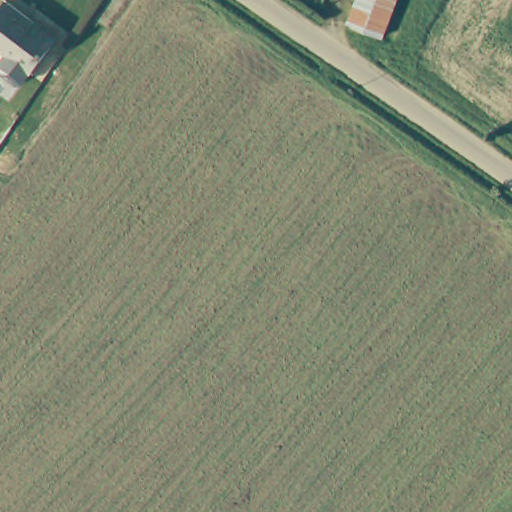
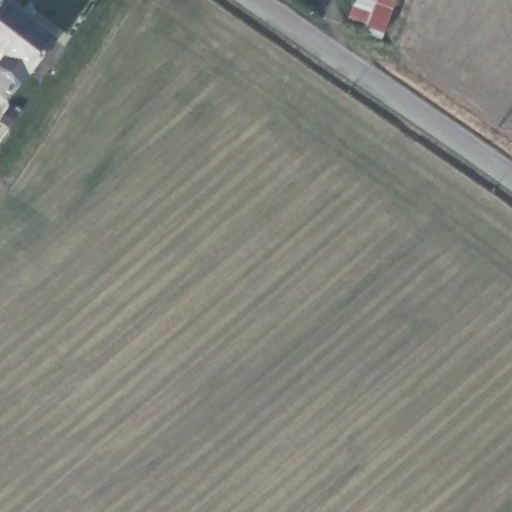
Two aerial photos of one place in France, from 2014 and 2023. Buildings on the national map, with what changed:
unchanged [(6,0),(8,0),(56,35),(29,72),(0,50),(0,7),(6,0)]
unchanged [(375,34),(347,21),(355,0),(386,0),(380,18),(375,34)]

